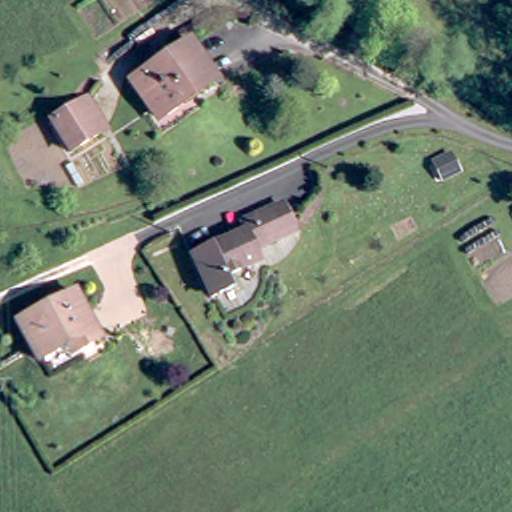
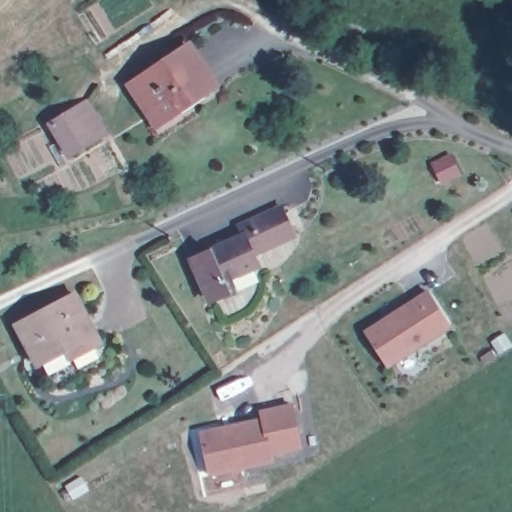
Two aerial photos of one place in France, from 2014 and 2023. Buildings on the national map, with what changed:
unchanged [(136,86),(193,50),(217,89),(162,124),(136,86)]
unchanged [(66,120),(58,106),(70,99),(81,112),(86,108),(105,140),(77,157),(58,124),(66,120)]
unchanged [(301,236),(261,256),(266,266),(235,281),(241,294),(218,304),(199,264),(249,240),(246,232),(286,209),(301,236)]
new [(428,288),(453,326),(388,367),(364,330),(428,288)]
unchanged [(70,350),(41,365),(20,325),(78,295),(103,344),(83,355),(74,359),(70,350)]
new [(259,409),(292,402),(302,449),(272,455),(274,463),(209,476),(199,430),(261,417),(259,409)]

